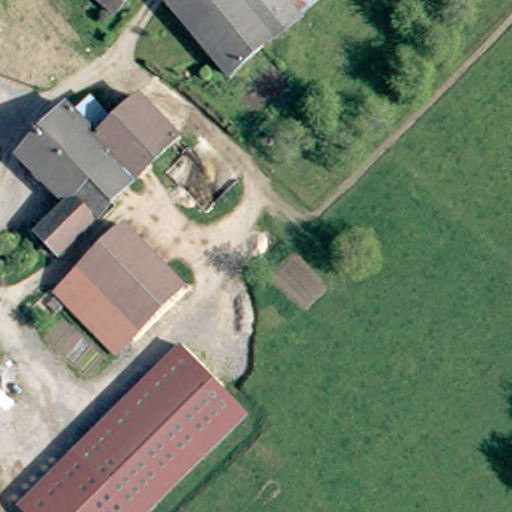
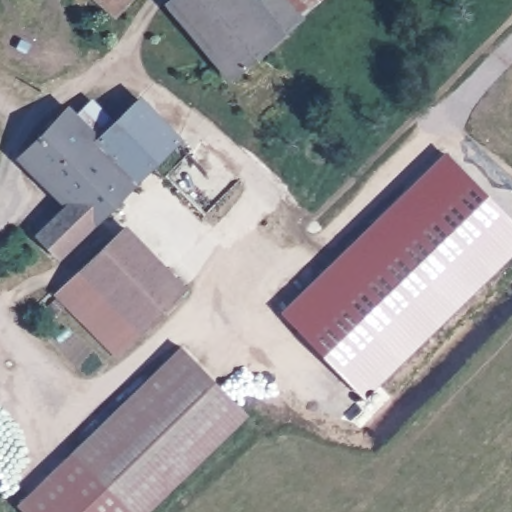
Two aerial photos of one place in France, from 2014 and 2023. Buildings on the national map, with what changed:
unchanged [(120,11),(105,0),(128,0),(120,11)]
unchanged [(225,80),(166,7),(168,3),(172,0),(246,0),(250,5),(277,38),(260,52),(225,80)]
unchanged [(250,5),(255,0),(296,0),(307,14),(277,38),(250,5)]
unchanged [(83,130),(115,100),(161,150),(115,200),(100,217),(77,242),(60,259),(40,238),(69,209),(20,165),(27,154),(70,112),(83,130)]
new [(448,154),(512,219),(512,255),(367,395),(286,311),(448,154)]
unchanged [(123,229),(186,289),(146,330),(102,289),(83,270),(91,263),(123,229)]
unchanged [(102,289),(146,330),(115,354),(56,295),(83,270),(102,289)]
unchanged [(148,512),(22,512),(15,505),(181,346),(248,416),(148,512)]

